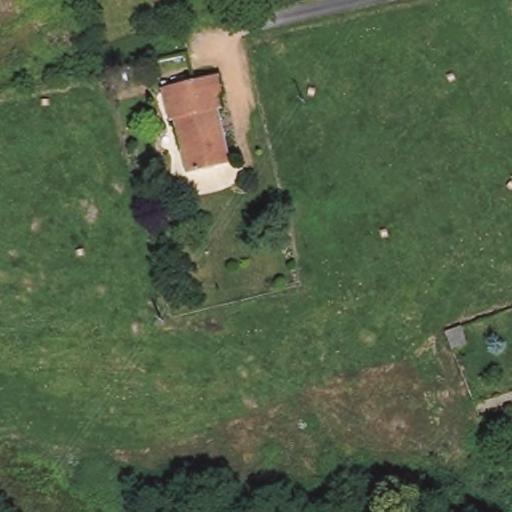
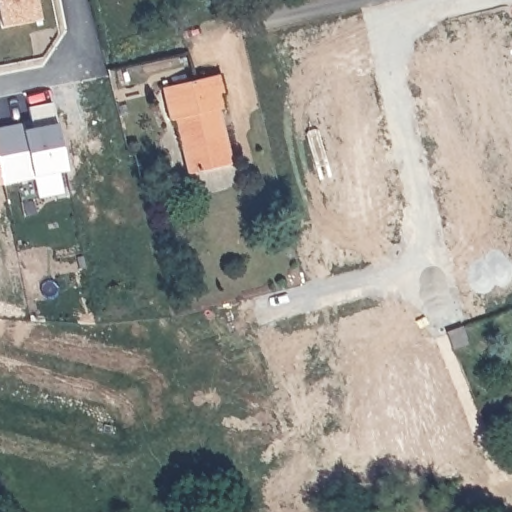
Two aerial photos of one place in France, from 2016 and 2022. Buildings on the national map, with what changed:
new [(3,24),(0,9),(0,0),(35,0),(38,15),(3,24)]
unchanged [(218,75),(223,94),(219,96),(222,108),(219,109),(231,161),(189,172),(176,117),(170,119),(161,90),(218,75)]
new [(35,178),(34,175),(3,183),(0,167),(0,127),(30,120),(27,106),(51,100),(56,123),(67,172),(35,178)]
unchanged [(473,333),(460,338),(452,320),(466,315),(473,333)]

